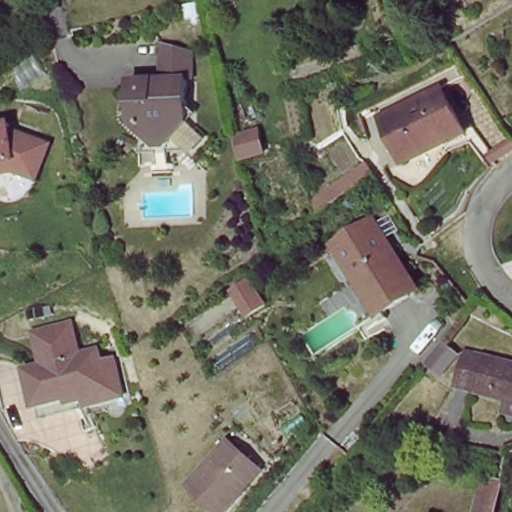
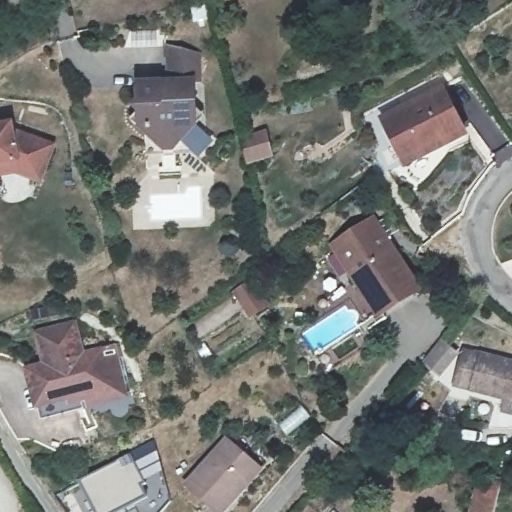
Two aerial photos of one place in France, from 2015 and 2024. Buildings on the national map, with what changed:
unchanged [(512,36),(512,42),(510,38),(512,36)]
unchanged [(161,42),(196,54),(196,79),(192,80),(192,121),(186,127),(172,144),(159,141),(149,136),(142,131),(127,116),(133,106),(128,104),(136,94),(136,80),(165,79),(166,53),(161,53),(161,42)]
unchanged [(380,117),(443,90),(466,135),(405,164),(380,117)]
unchanged [(14,124),(15,132),(55,145),(47,171),(21,162),(0,166),(0,127),(14,124)]
unchanged [(417,289),(385,313),(337,247),(369,224),(417,289)]
new [(255,278),(269,302),(253,312),(239,288),(255,278)]
unchanged [(38,420),(35,405),(26,368),(45,363),(37,331),(74,322),(82,354),(100,350),(103,362),(116,359),(125,396),(87,406),(84,393),(79,395),(82,408),(38,420)]
unchanged [(512,359),(512,399),(455,388),(464,350),(512,359)]
unchanged [(415,370),(431,351),(445,363),(429,382),(415,370)]
unchanged [(260,470),(222,512),(217,512),(186,484),(227,439),(260,470)]
new [(156,442),(170,501),(161,512),(139,512),(137,508),(144,505),(141,500),(117,512),(97,512),(81,480),(156,442)]
unchanged [(484,465),(504,472),(493,512),(471,512),(484,465)]

